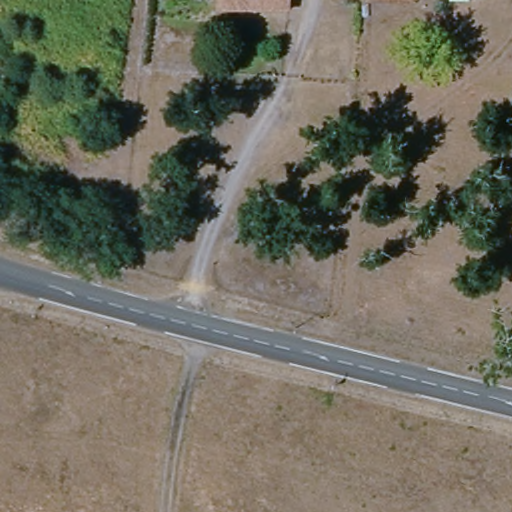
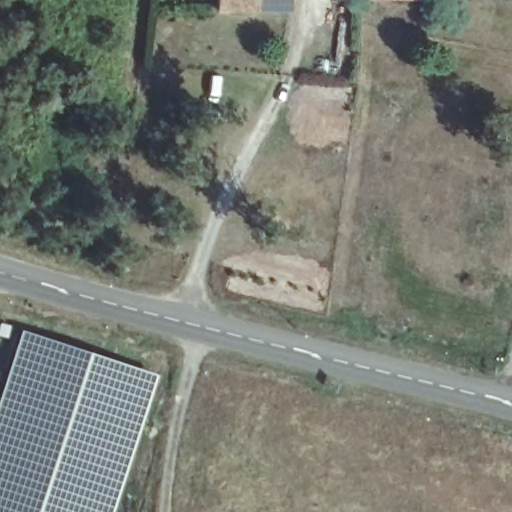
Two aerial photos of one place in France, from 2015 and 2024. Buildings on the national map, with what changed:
unchanged [(222,7),(223,0),(283,0),(282,9),(222,7)]
new [(135,424),(110,511),(109,512),(0,512),(0,386),(19,329),(152,374),(135,424)]

